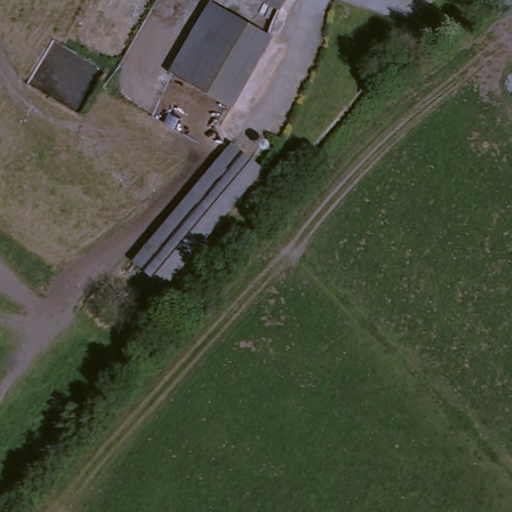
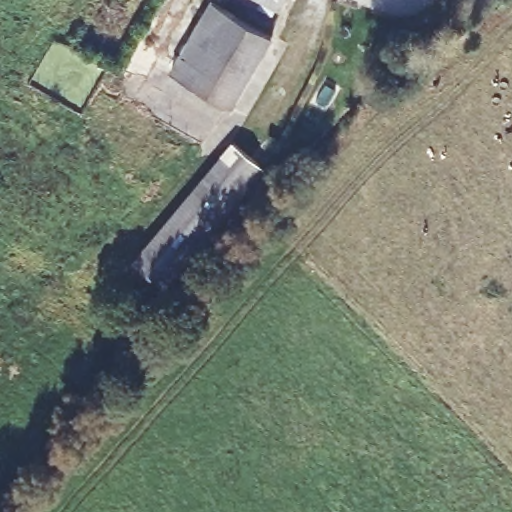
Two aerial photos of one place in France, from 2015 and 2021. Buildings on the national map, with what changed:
unchanged [(287,8),(272,0),(292,0),(287,8)]
unchanged [(200,86),(180,74),(218,2),(240,13),(200,86)]
unchanged [(278,34),(237,105),(200,86),(240,13),(278,34)]
unchanged [(140,267),(231,141),(266,166),(172,290),(140,267)]

